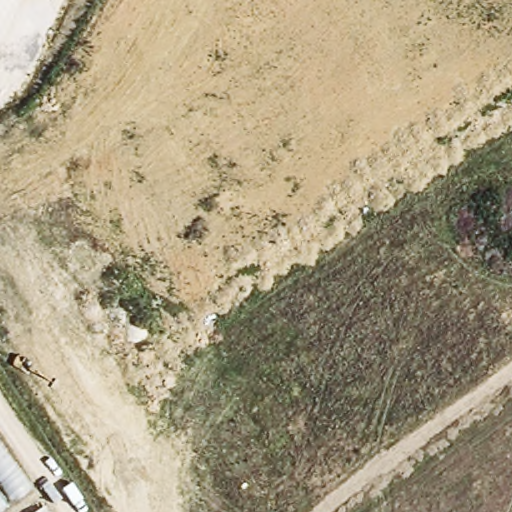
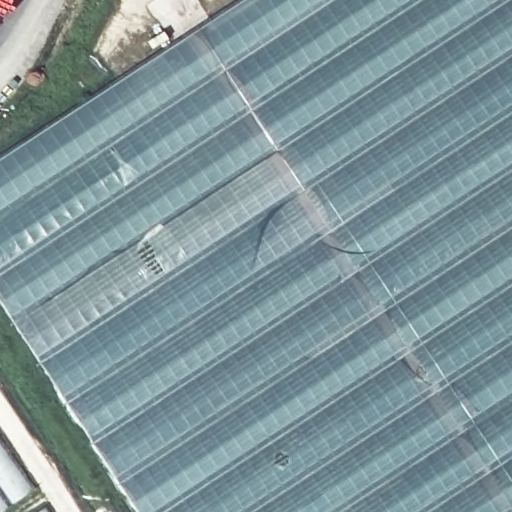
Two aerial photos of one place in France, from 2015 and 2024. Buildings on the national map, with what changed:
new [(246,0),(512,0),(512,512),(138,512),(0,301),(0,161),(246,0)]
unchanged [(1,512),(0,512),(0,433),(35,487),(1,512)]
unchanged [(39,512),(48,505),(53,512),(39,512)]

